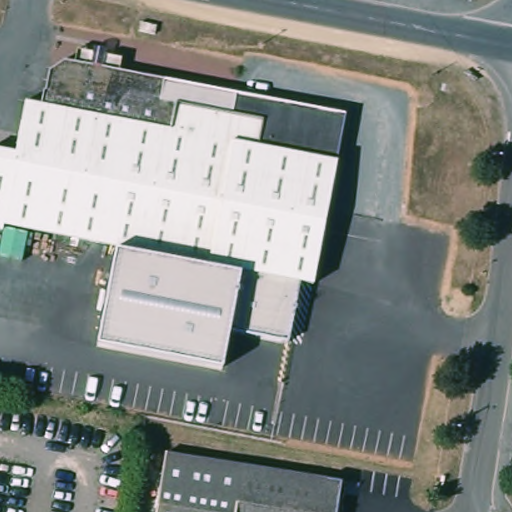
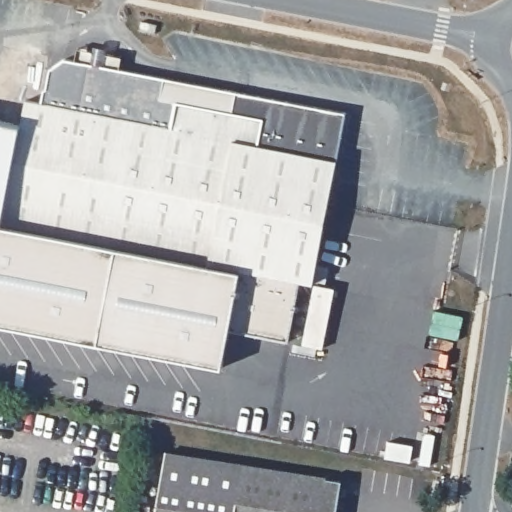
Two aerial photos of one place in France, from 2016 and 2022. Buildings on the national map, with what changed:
unchanged [(14,151),(24,99),(42,102),(49,68),(61,59),(346,114),(316,283),(5,225),(4,232),(0,232),(0,149),(14,151)]
new [(0,323),(0,232),(4,232),(5,225),(116,245),(96,343),(0,323)]
unchanged [(240,269),(297,279),(285,340),(230,329),(222,367),(96,343),(116,245),(240,269)]
unchanged [(337,512),(159,512),(169,453),(342,481),(337,512)]

